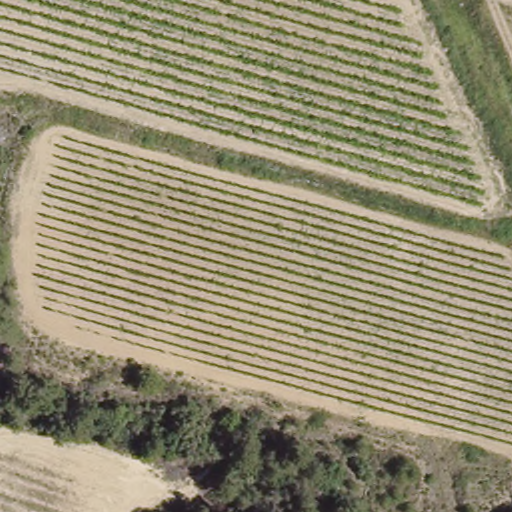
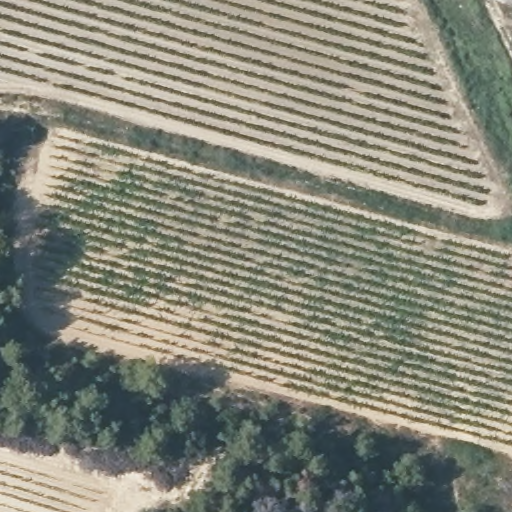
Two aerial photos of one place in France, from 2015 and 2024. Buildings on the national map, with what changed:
[]

